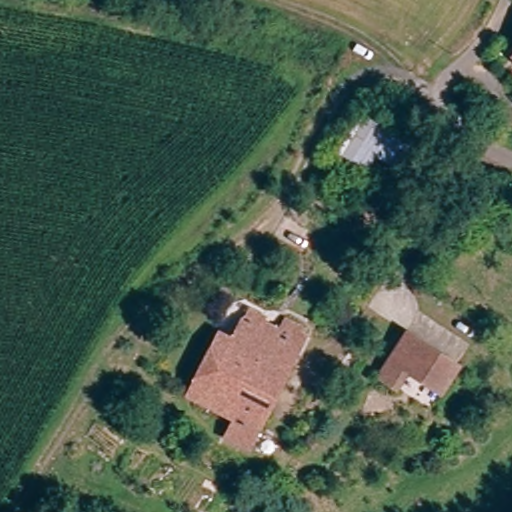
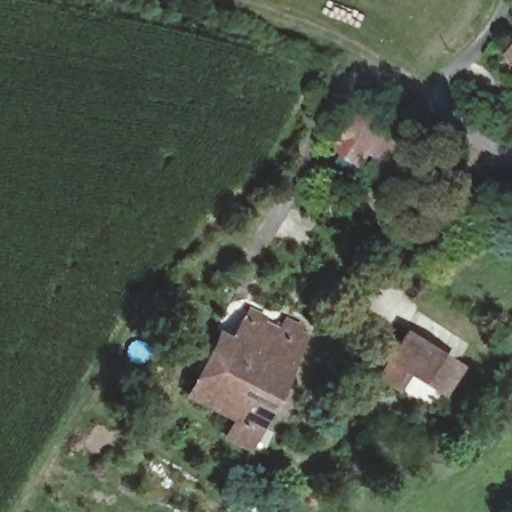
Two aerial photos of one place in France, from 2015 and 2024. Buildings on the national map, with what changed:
unchanged [(410,141),(395,163),(356,134),(348,127),(364,107),(369,111),(410,141)]
unchanged [(193,392),(233,334),(251,306),(265,317),(259,326),(263,330),(256,342),(267,349),(250,376),(244,371),(230,392),(225,388),(213,405),(193,392)]
unchanged [(182,384),(220,326),(233,334),(193,392),(182,384)]
unchanged [(225,388),(230,392),(244,371),(250,376),(267,349),(256,342),(263,330),(275,339),(284,326),(305,341),(234,445),(215,430),(225,413),(213,405),(225,388)]
unchanged [(378,370),(392,354),(412,331),(458,373),(438,396),(407,369),(395,385),(378,370)]

